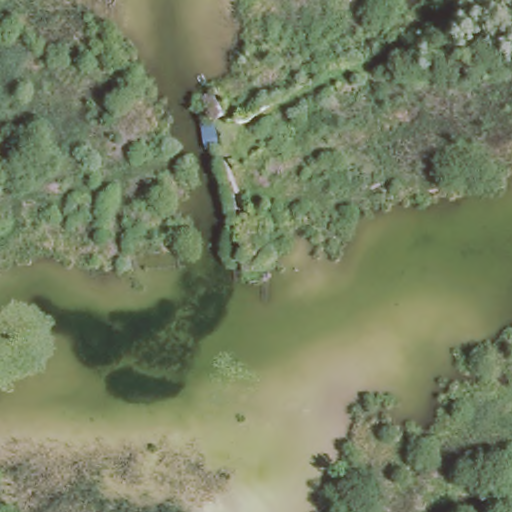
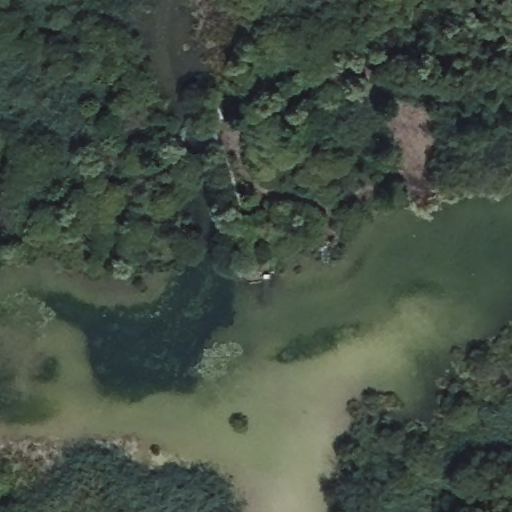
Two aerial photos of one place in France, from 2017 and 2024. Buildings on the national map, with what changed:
unchanged [(203,99),(216,91),(226,109),(213,117),(203,99)]
unchanged [(243,270),(242,255),(241,227),(257,226),(259,254),(260,268),(243,270)]

